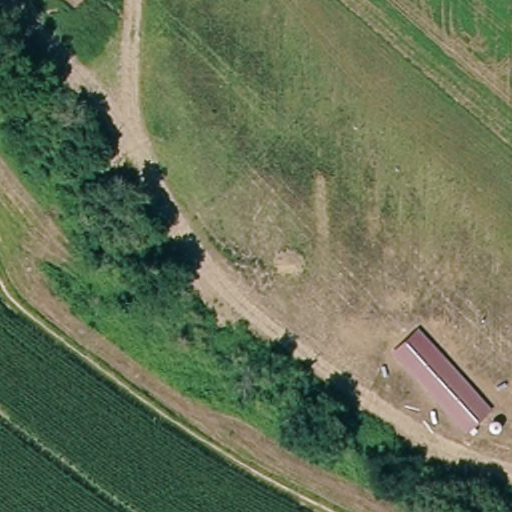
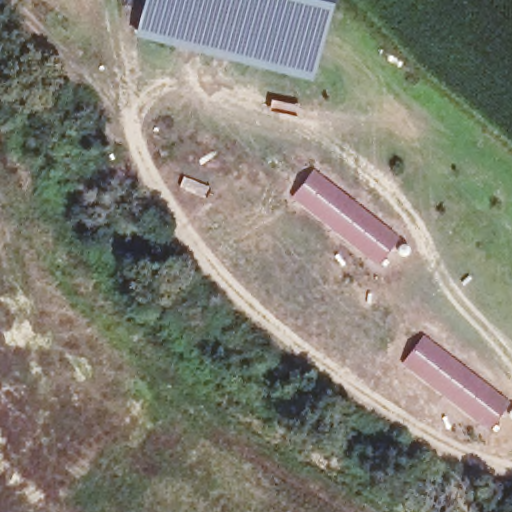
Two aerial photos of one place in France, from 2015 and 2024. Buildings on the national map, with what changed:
new [(335,0),(314,81),(134,35),(143,0),(335,0)]
new [(378,269),(297,195),(322,169),(402,244),(378,269)]
new [(469,422),(391,345),(417,320),(494,398),(469,422)]

